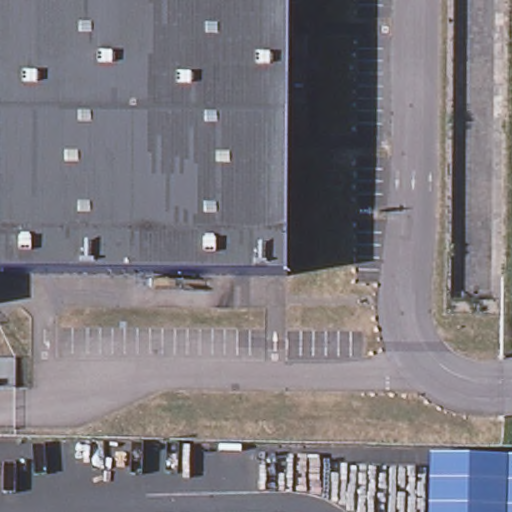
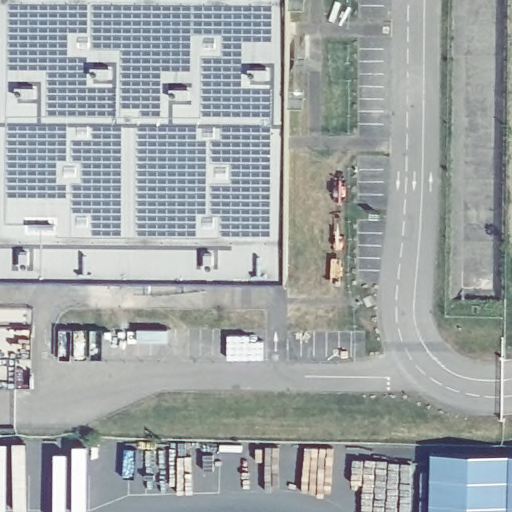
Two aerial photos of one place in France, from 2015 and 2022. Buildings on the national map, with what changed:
unchanged [(0,276),(0,0),(292,0),(291,276),(0,276)]
unchanged [(430,455),(512,458),(512,512),(429,512),(430,455)]

